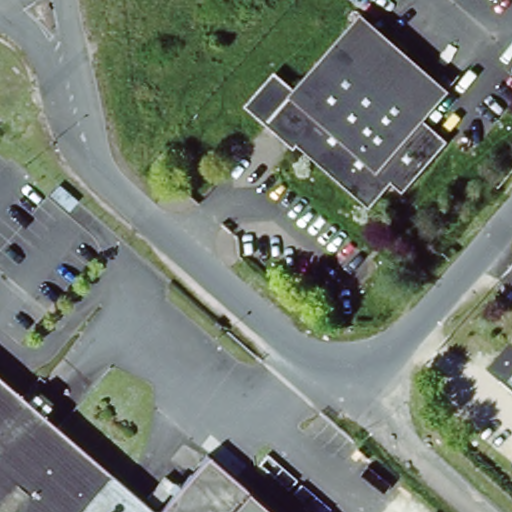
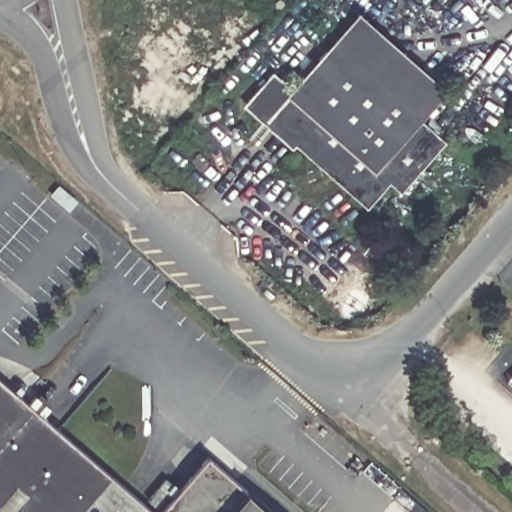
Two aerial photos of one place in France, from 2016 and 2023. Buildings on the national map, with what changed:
unchanged [(366,17),(449,92),(423,121),(340,45),(366,17)]
unchanged [(402,193),(391,183),(367,208),(270,121),(250,103),(274,76),(295,94),(340,45),(423,121),(447,143),(402,193)]
unchanged [(508,383),(512,378),(512,386),(508,383)]
unchanged [(0,512),(0,382),(152,512),(0,512)]
unchanged [(269,512),(160,512),(206,457),(269,512)]

